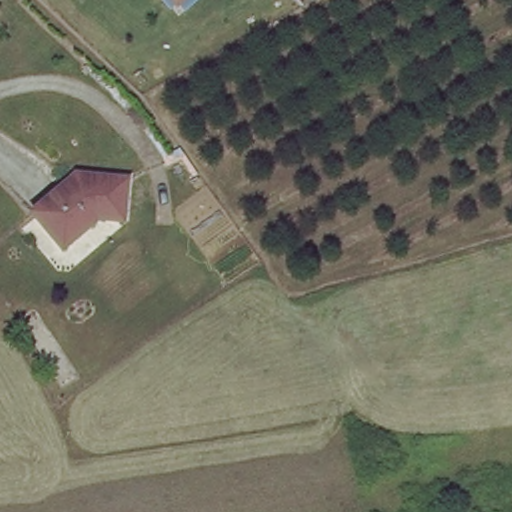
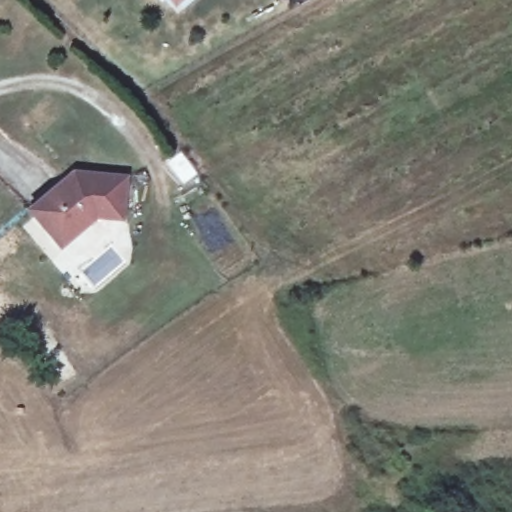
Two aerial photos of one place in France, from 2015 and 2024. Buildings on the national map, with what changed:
unchanged [(173,5),(168,0),(179,0),(173,5)]
unchanged [(53,240),(29,212),(73,174),(125,180),(121,219),(97,217),(60,248),(53,240)]

